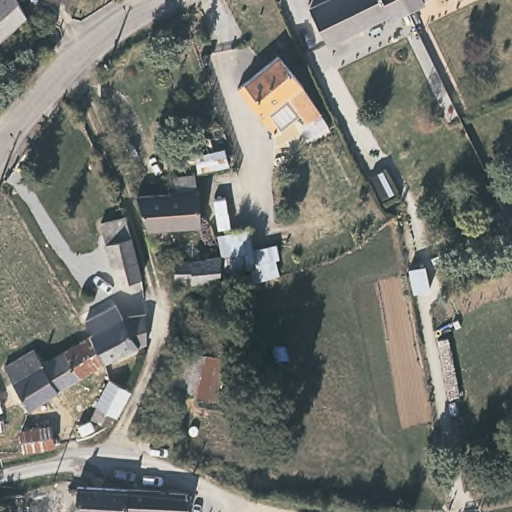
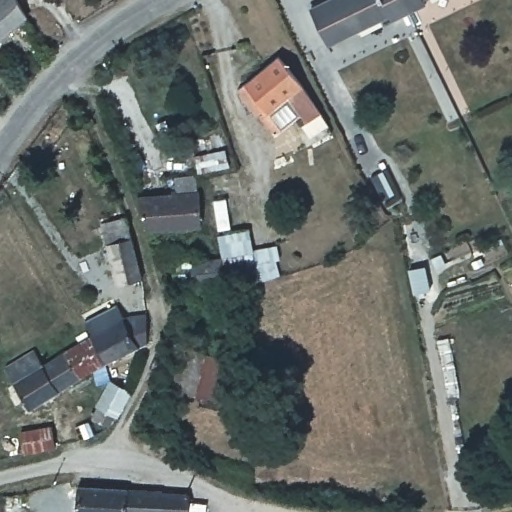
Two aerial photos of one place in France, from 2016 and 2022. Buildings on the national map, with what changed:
unchanged [(14,0),(26,21),(16,30),(0,45),(0,0),(14,0)]
unchanged [(393,23),(390,19),(332,49),(313,14),(340,0),(395,0),(404,17),(393,23)]
unchanged [(427,0),(419,4),(422,8),(404,17),(395,0),(427,0)]
unchanged [(274,57),(320,117),(306,127),(285,106),(261,122),(235,90),(274,57)]
unchanged [(188,195),(196,194),(203,230),(149,236),(145,236),(138,200),(165,198),(164,185),(186,184),(188,195)]
unchanged [(133,284),(112,284),(108,222),(128,221),(133,284)]
unchanged [(279,280),(252,286),(251,283),(188,287),(172,287),(174,266),(189,267),(252,258),(251,252),(274,250),(279,280)]
unchanged [(91,338),(83,321),(114,303),(124,321),(142,310),(145,340),(105,366),(91,338)]
unchanged [(33,412),(6,371),(35,351),(46,369),(91,338),(105,366),(33,412)]
unchanged [(225,361),(217,398),(178,397),(169,395),(175,357),(225,361)]
unchanged [(125,394),(114,422),(103,431),(91,425),(109,387),(125,394)]
unchanged [(18,457),(17,435),(51,428),(52,455),(18,457)]
unchanged [(77,493),(125,496),(125,512),(76,512),(77,493)]
unchanged [(162,497),(162,502),(190,502),(190,512),(125,512),(125,496),(162,497)]

